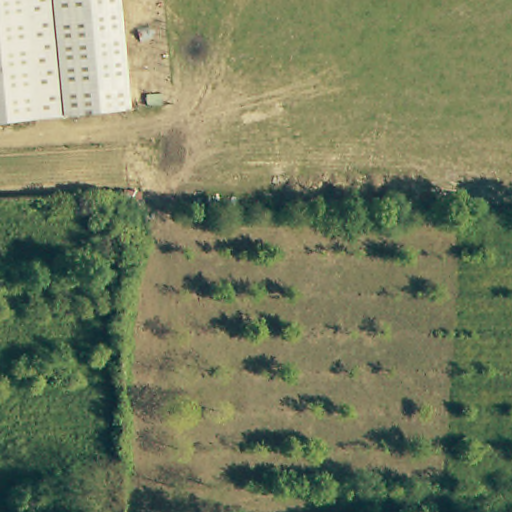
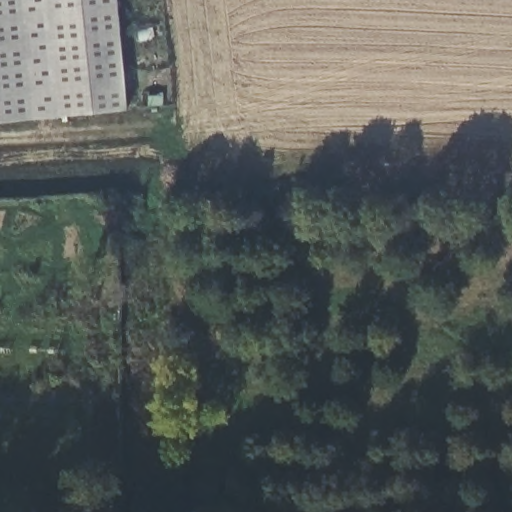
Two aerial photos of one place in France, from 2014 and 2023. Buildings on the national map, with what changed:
unchanged [(130,109),(0,122),(0,0),(120,0),(130,109)]

